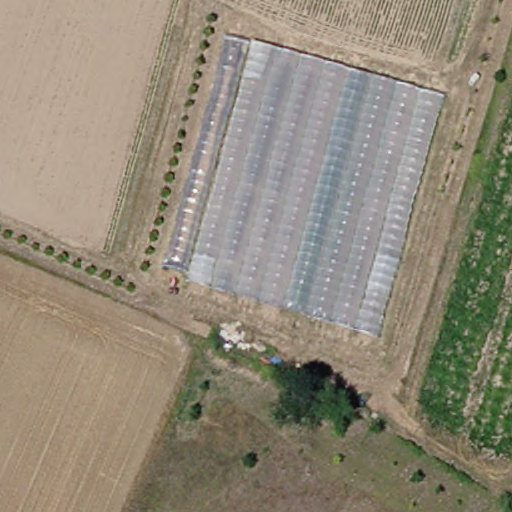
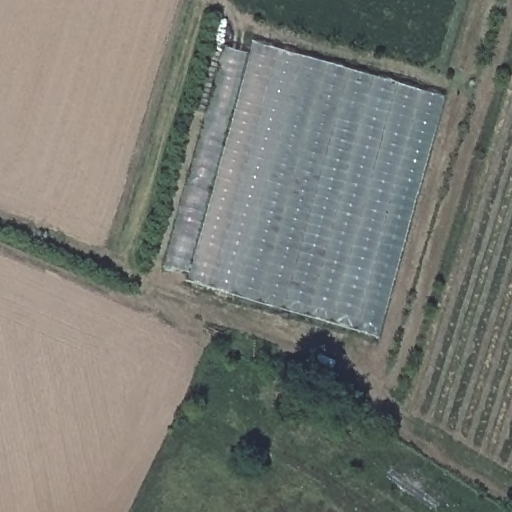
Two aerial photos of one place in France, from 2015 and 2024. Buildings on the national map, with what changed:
unchanged [(447,96),(382,339),(189,281),(254,40),(447,96)]

